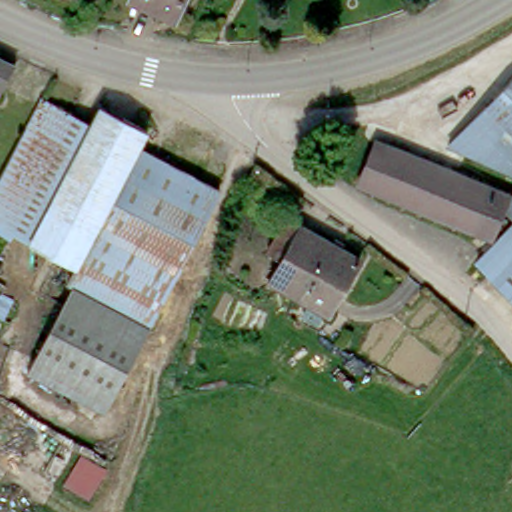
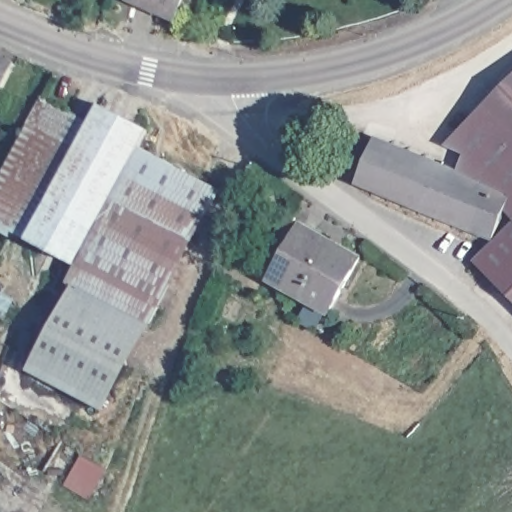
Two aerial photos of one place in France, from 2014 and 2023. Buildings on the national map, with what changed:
unchanged [(174,8),(157,0),(178,0),(174,8)]
unchanged [(0,92),(0,52),(15,59),(0,92)]
unchanged [(451,143),(512,79),(512,169),(451,143)]
unchanged [(42,245),(22,234),(20,237),(0,227),(0,189),(2,185),(47,96),(80,114),(99,125),(37,239),(42,242),(42,245)]
unchanged [(99,125),(110,105),(156,129),(147,147),(228,191),(155,326),(80,284),(75,281),(82,266),(42,245),(42,242),(37,239),(99,125)]
unchanged [(380,138),(510,192),(490,240),(360,182),(380,138)]
unchanged [(334,317),(274,282),(285,260),(272,252),(292,219),(305,226),(363,260),(334,317)]
unchanged [(480,261),(512,232),(512,295),(480,261)]
unchanged [(127,377),(109,411),(33,370),(55,330),(80,284),(155,326),(127,377)]

